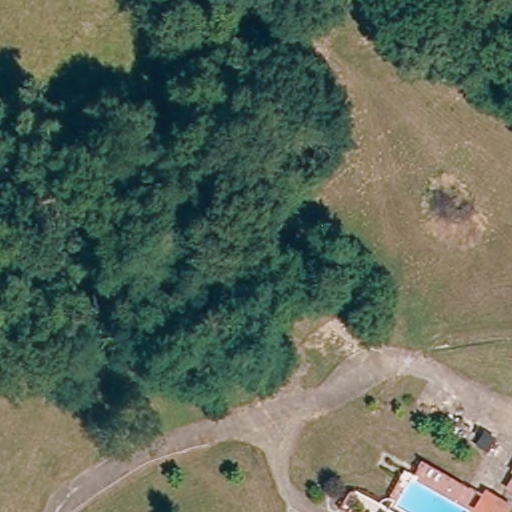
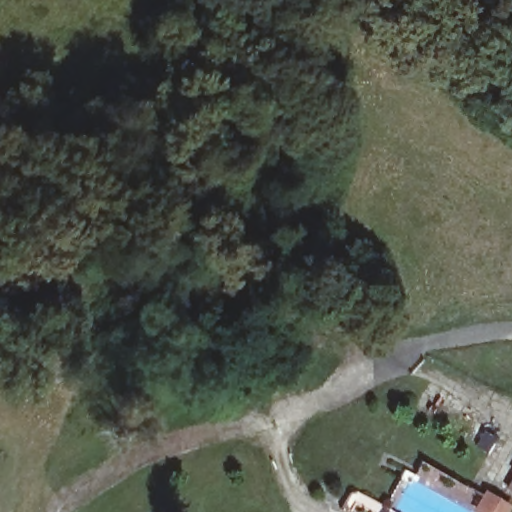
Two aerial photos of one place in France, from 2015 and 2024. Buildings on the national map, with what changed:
unchanged [(511,495),(512,494),(512,496),(511,495)]

